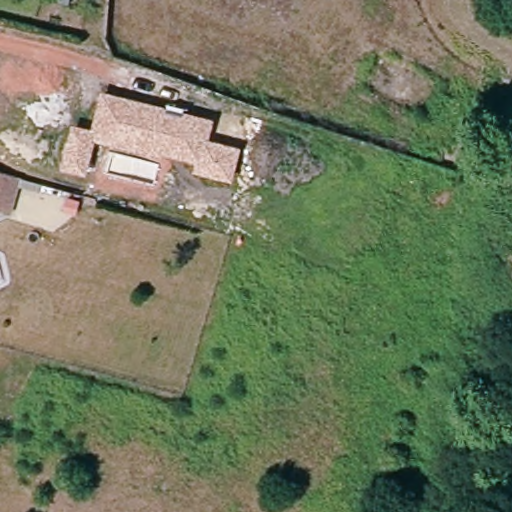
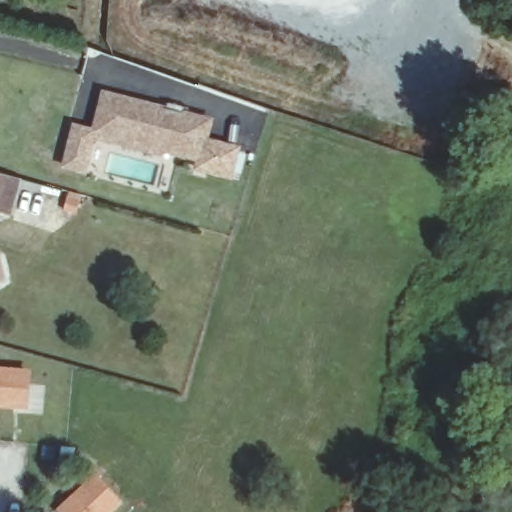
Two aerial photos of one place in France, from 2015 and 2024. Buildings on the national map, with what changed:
unchanged [(72,125),(92,129),(101,91),(214,119),(209,140),(240,147),(233,182),(192,172),(195,161),(162,154),(162,155),(96,140),(86,176),(61,169),(72,125)]
unchanged [(11,214),(0,211),(0,172),(21,177),(11,214)]
unchanged [(70,211),(59,208),(62,196),(72,200),(70,211)]
new [(27,412),(0,410),(0,367),(31,370),(27,412)]
new [(95,473),(124,505),(115,512),(55,512),(54,510),(95,473)]

